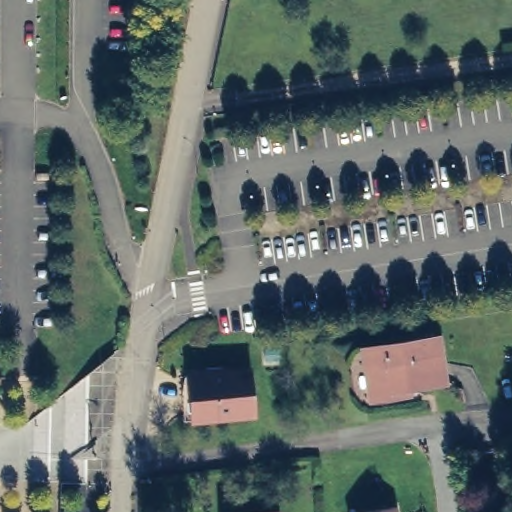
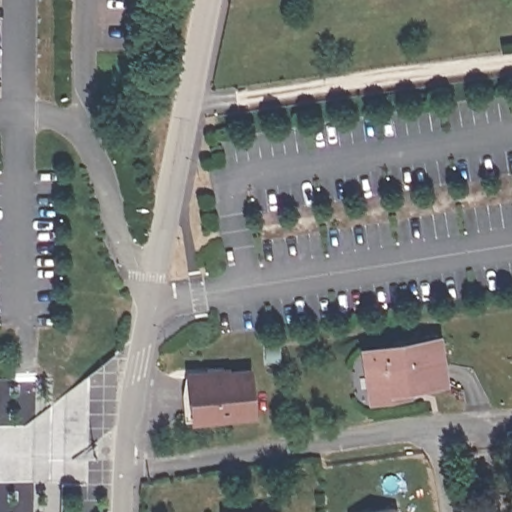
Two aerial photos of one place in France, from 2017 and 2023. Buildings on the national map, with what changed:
unchanged [(393,395),(370,398),(364,349),(436,338),(442,381),(404,387),(405,393),(393,395)]
unchanged [(280,361),(265,362),(265,349),(264,347),(278,346),(278,349),(280,361)]
unchanged [(190,420),(187,376),(243,370),(247,415),(190,420)]
unchanged [(372,512),(392,508),(393,512),(372,512)]

